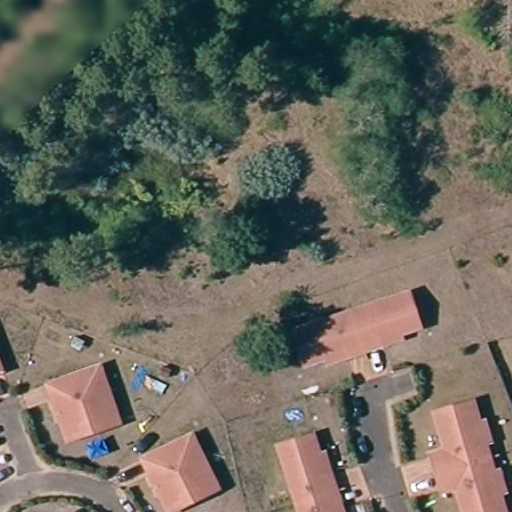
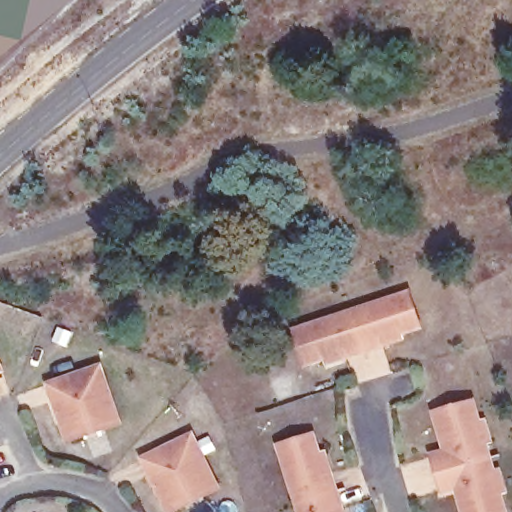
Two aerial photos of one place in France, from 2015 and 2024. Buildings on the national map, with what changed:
unchanged [(327,367),(324,358),(307,365),(295,330),(408,293),(420,327),(402,333),(405,342),(388,347),(385,334),(380,336),(382,344),(347,356),(343,347),(338,349),(343,362),(327,367)]
unchanged [(88,440),(86,432),(67,438),(62,422),(57,423),(50,402),(54,401),(49,383),(100,366),(119,420),(101,427),(103,434),(88,440)]
unchanged [(2,371),(0,371),(0,367),(2,371)]
unchanged [(447,490),(437,457),(432,458),(431,452),(450,447),(440,413),(478,402),(485,422),(492,421),(498,441),(491,443),(500,472),(507,471),(512,489),(512,491),(505,493),(511,512),(469,512),(462,492),(444,497),(442,492),(447,490)]
unchanged [(191,502),(173,510),(148,458),(197,435),(222,486),(205,495),(209,502),(194,509),(191,502)]
unchanged [(318,436),(324,453),(332,451),(337,467),(325,471),(327,476),(335,472),(347,509),(338,512),(305,512),(284,447),(318,436)]

